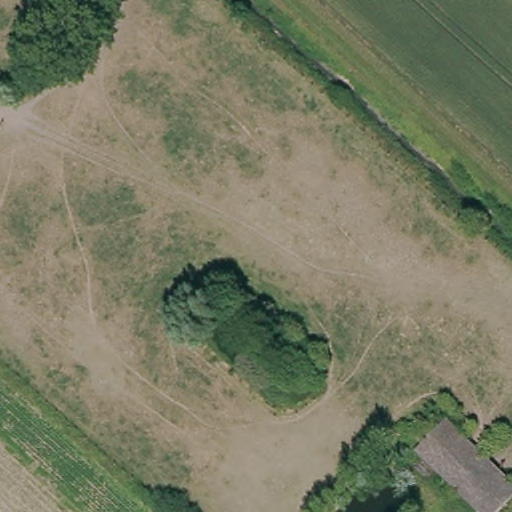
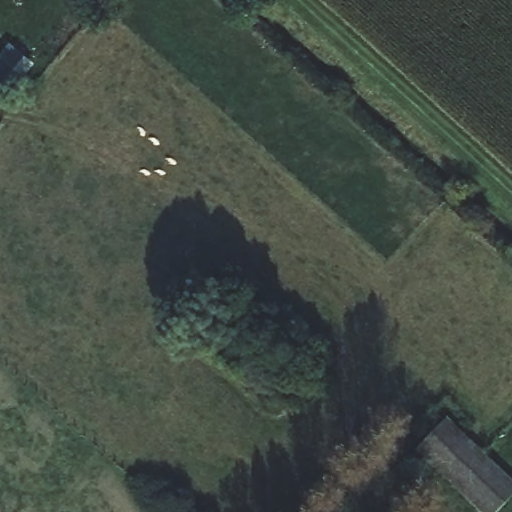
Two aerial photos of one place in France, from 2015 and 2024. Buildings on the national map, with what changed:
unchanged [(512,499),(499,512),(478,512),(416,453),(445,423),(512,489),(512,499)]

